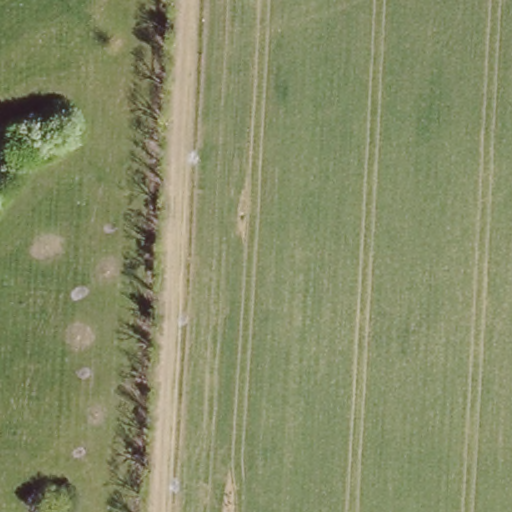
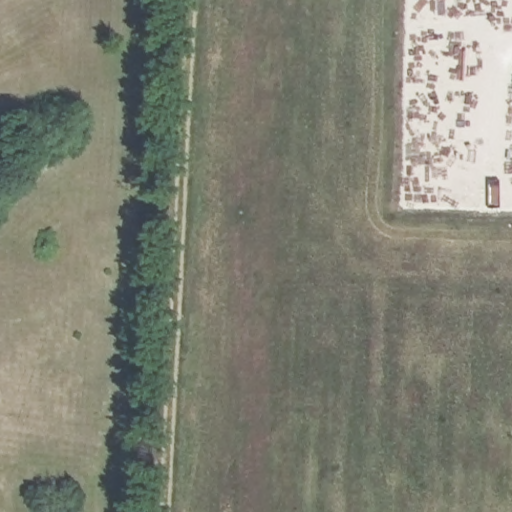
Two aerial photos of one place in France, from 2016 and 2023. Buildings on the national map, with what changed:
[]

